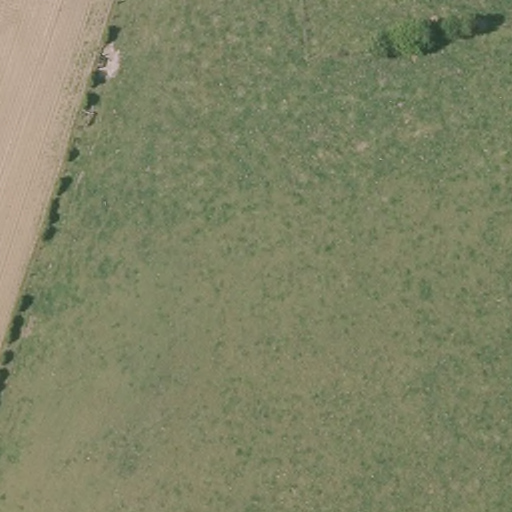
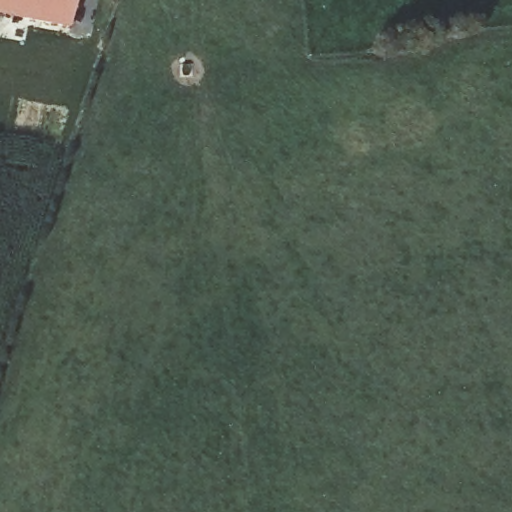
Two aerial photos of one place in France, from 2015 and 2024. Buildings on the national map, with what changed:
new [(0,18),(0,0),(74,0),(68,30),(0,18)]

